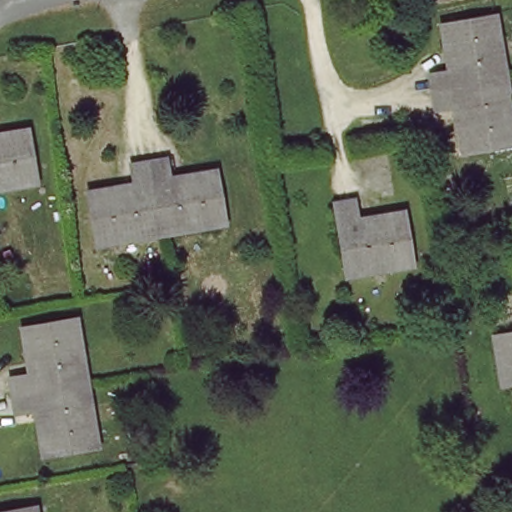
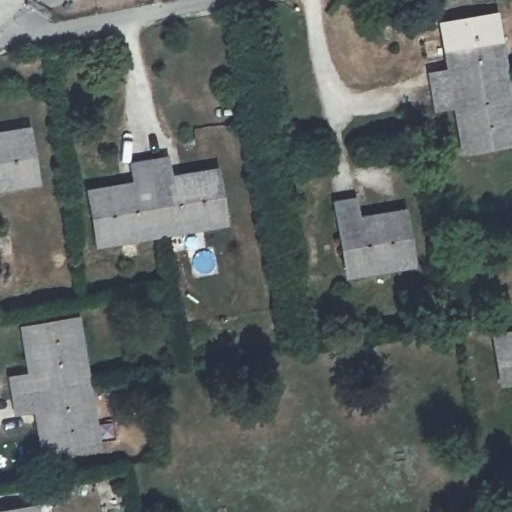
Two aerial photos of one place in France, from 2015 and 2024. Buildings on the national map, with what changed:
unchanged [(433,103),(428,73),(449,70),(441,22),(493,13),(512,119),(512,138),(462,148),(454,100),(433,103)]
unchanged [(27,126),(36,177),(0,184),(0,131),(27,126)]
unchanged [(89,192),(136,184),(132,162),(164,156),(168,179),(215,170),(227,218),(98,242),(89,192)]
unchanged [(346,256),(338,198),(354,195),(358,215),(404,206),(414,258),(387,263),(348,270),(346,256)]
unchanged [(98,443),(48,453),(40,408),(14,412),(8,378),(33,373),(25,325),(75,318),(98,443)]
unchanged [(495,338),(512,335),(512,382),(499,384),(495,338)]
unchanged [(31,512),(0,512),(0,510),(30,505),(31,512)]

